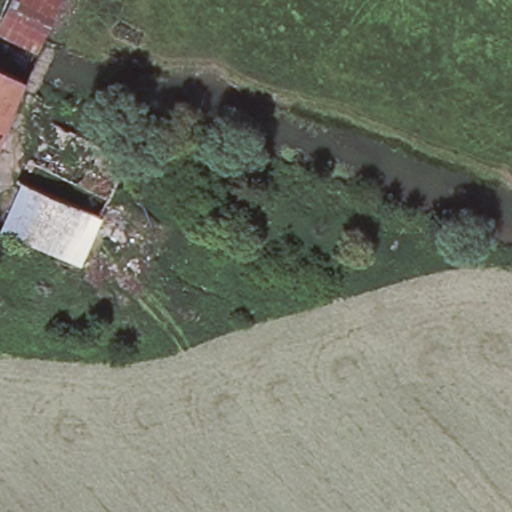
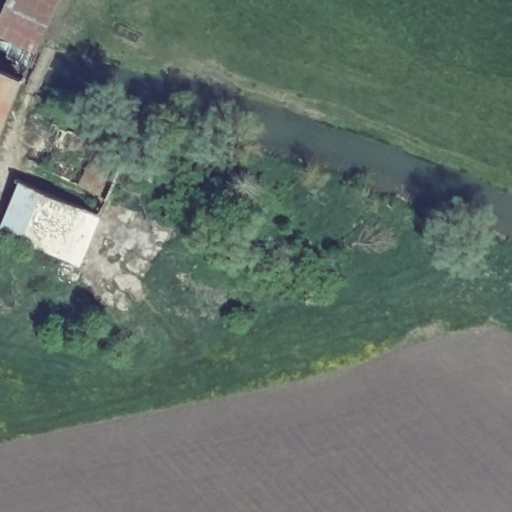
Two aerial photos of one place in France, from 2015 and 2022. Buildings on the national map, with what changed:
unchanged [(7,26),(10,8),(14,0),(66,0),(51,33),(48,44),(7,26)]
unchanged [(21,82),(20,85),(7,116),(0,113),(0,70),(23,80),(21,82)]
unchanged [(0,132),(0,113),(7,116),(0,132)]
unchanged [(34,251),(0,236),(0,228),(23,177),(88,205),(103,212),(76,271),(61,264),(34,251)]

